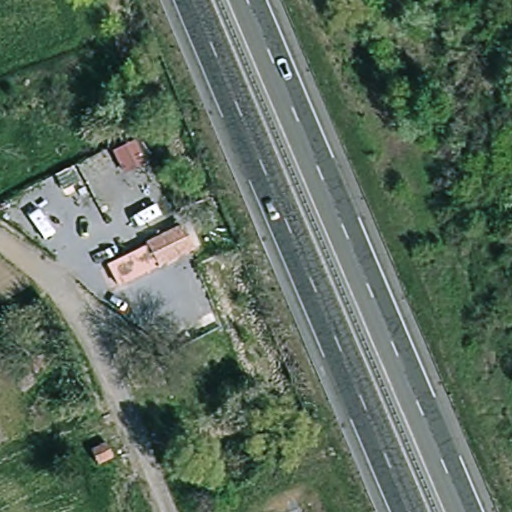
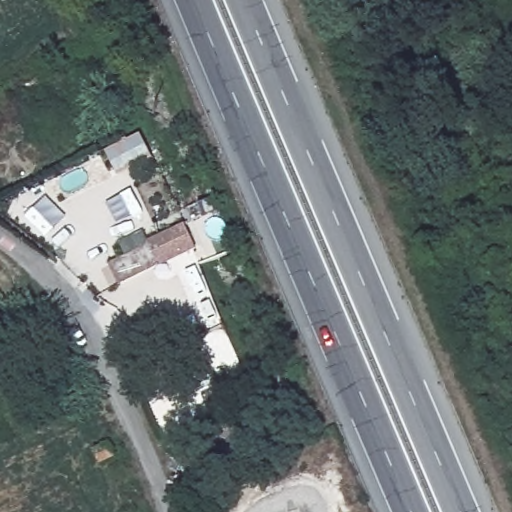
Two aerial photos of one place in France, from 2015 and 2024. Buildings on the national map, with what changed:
unchanged [(120,283),(113,261),(188,226),(197,250),(120,283)]
unchanged [(113,457),(98,464),(91,450),(107,443),(113,457)]

